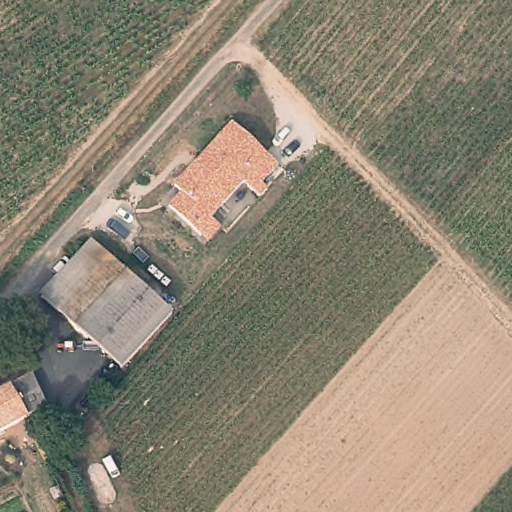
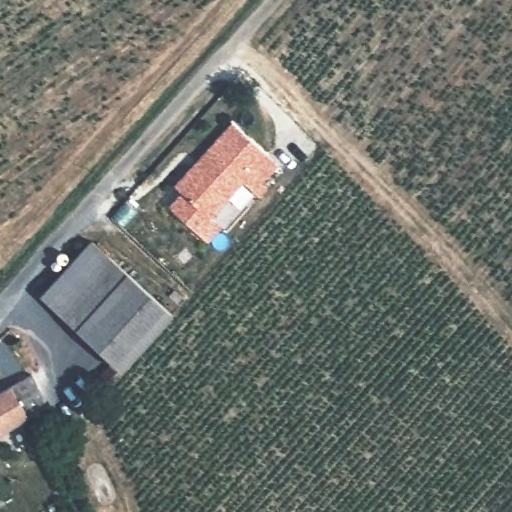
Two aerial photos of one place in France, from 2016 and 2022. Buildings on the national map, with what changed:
unchanged [(210,237),(204,232),(172,204),(185,189),(177,182),(234,119),(281,160),(256,187),(246,177),(214,214),(217,217),(224,222),(210,237)]
unchanged [(172,308),(172,310),(121,366),(120,366),(40,295),(92,236),(172,308)]
unchanged [(35,369),(50,401),(0,429),(0,389),(35,369)]
unchanged [(61,425),(45,435),(35,416),(53,406),(61,425)]

